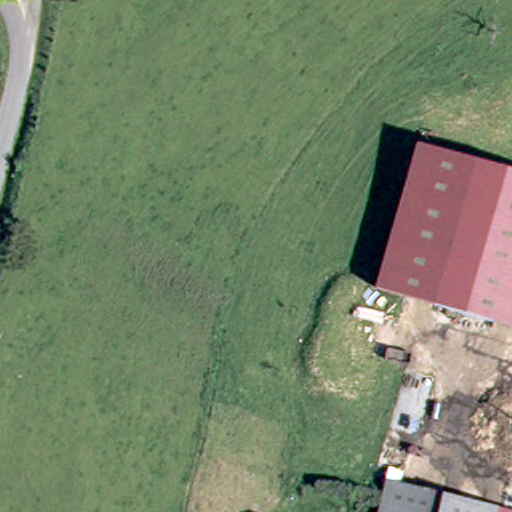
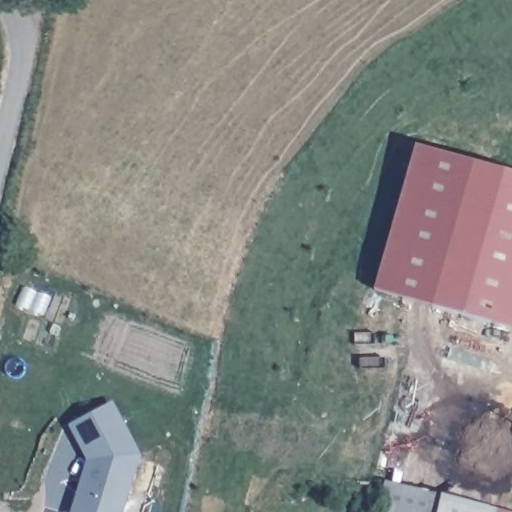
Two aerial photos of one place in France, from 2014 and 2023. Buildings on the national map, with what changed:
unchanged [(478,165),(512,175),(512,332),(379,292),(392,250),(422,147),(478,165)]
new [(141,454),(123,512),(70,512),(87,458),(69,425),(112,401),(141,454)]
unchanged [(390,475),(405,478),(403,488),(459,502),(499,511),(499,512),(381,512),(387,485),(390,475)]
unchanged [(501,512),(499,512),(499,511),(501,512)]

